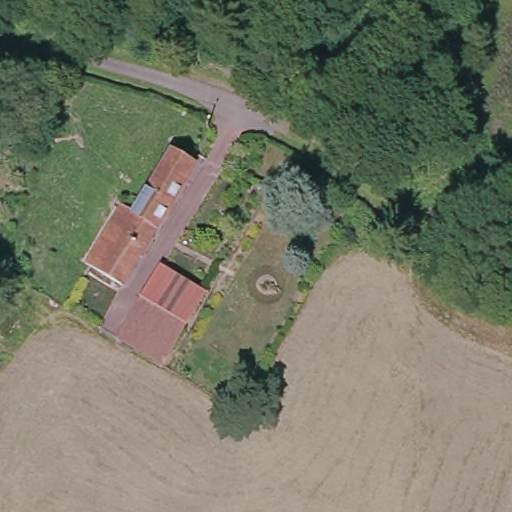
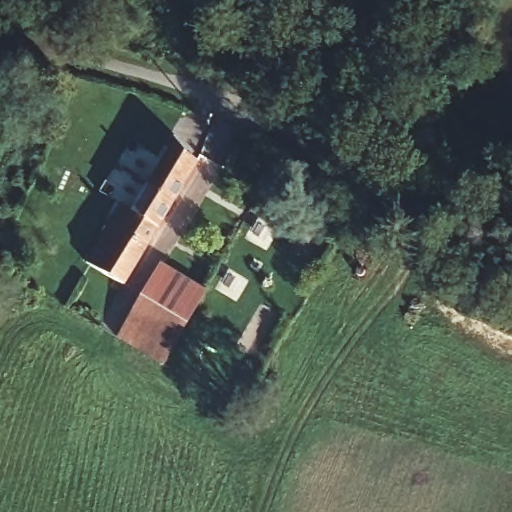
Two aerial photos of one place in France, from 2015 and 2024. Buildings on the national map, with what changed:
unchanged [(148,209),(185,152),(207,164),(132,286),(97,265),(135,202),(148,209)]
unchanged [(205,289),(161,363),(119,336),(162,263),(205,289)]

